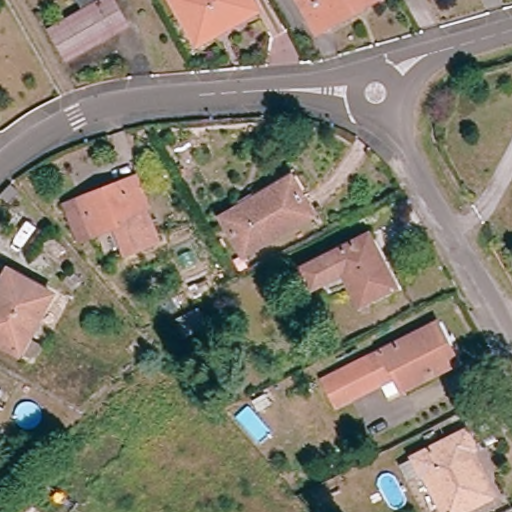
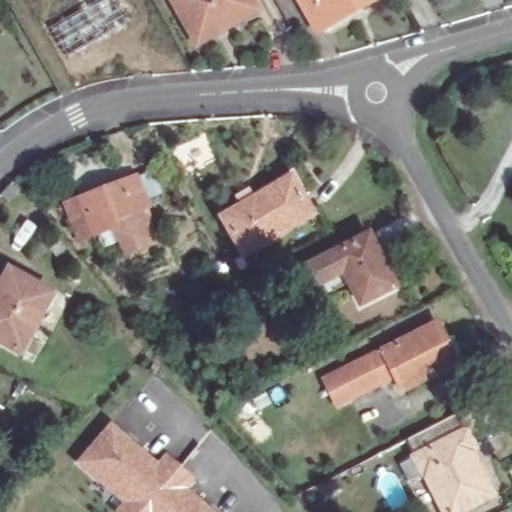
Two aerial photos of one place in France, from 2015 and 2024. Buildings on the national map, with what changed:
unchanged [(70,62),(55,36),(86,17),(77,2),(82,0),(95,0),(100,10),(112,3),(126,29),(70,62)]
unchanged [(196,40),(172,0),(246,0),(248,3),(252,10),(215,30),(196,40)]
unchanged [(297,0),(370,0),(360,5),(313,31),(311,25),(297,0)]
unchanged [(60,202),(76,196),(131,175),(143,204),(142,204),(156,237),(122,250),(111,224),(90,230),(74,237),(60,202)]
unchanged [(283,177),(304,213),(234,252),(216,220),(236,209),(240,215),(252,207),(246,198),(283,177)]
unchanged [(335,270),(305,285),(295,267),(357,234),(385,285),(351,302),(335,270)]
unchanged [(57,255),(52,249),(46,242),(54,235),(60,241),(65,247),(57,255)]
unchanged [(10,351),(0,346),(0,269),(41,292),(18,336),(30,343),(22,358),(10,351)]
unchanged [(198,307),(206,322),(187,334),(179,318),(198,307)]
unchanged [(453,316),(461,331),(472,355),(467,357),(417,382),(410,368),(365,390),(352,396),(340,372),(353,366),(453,316)]
new [(113,511),(122,501),(77,462),(111,421),(157,461),(166,453),(196,478),(187,488),(216,512),(114,512),(113,511)]
unchanged [(466,450),(461,453),(482,498),(455,512),(434,512),(416,475),(402,481),(395,465),(408,459),(457,434),(466,450)]
new [(512,462),(512,475),(507,465),(512,462)]

